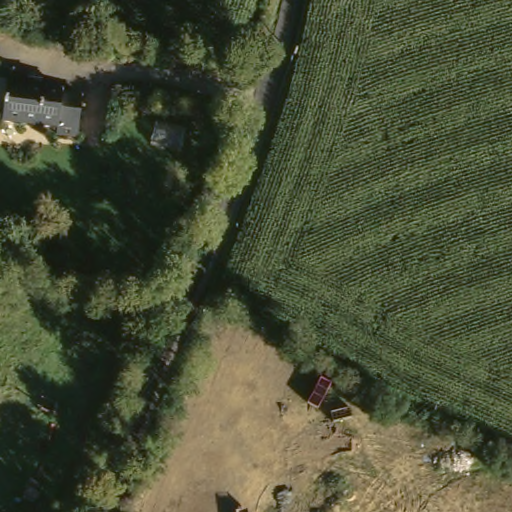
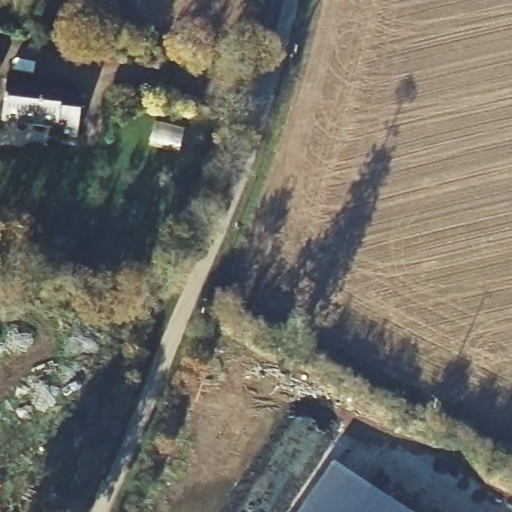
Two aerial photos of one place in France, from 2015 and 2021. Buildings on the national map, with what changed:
unchanged [(31,91),(59,92),(58,97),(80,99),(77,136),(55,135),(55,127),(0,121),(0,113),(2,80),(31,82),(31,91)]
new [(401,512),(301,512),(333,465),(401,512)]

